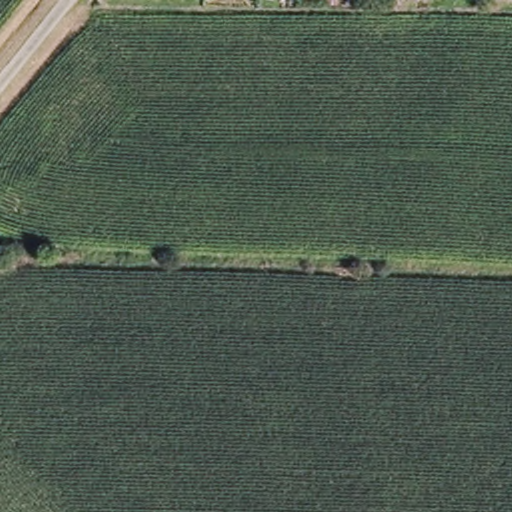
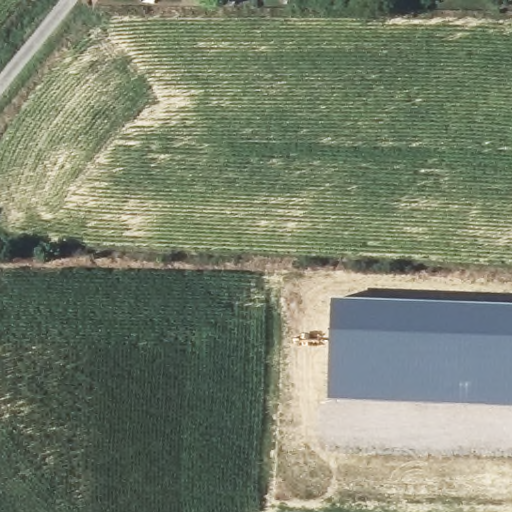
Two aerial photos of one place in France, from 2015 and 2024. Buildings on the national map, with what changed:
new [(398,298),(512,303),(512,405),(327,398),(331,296),(398,298)]

